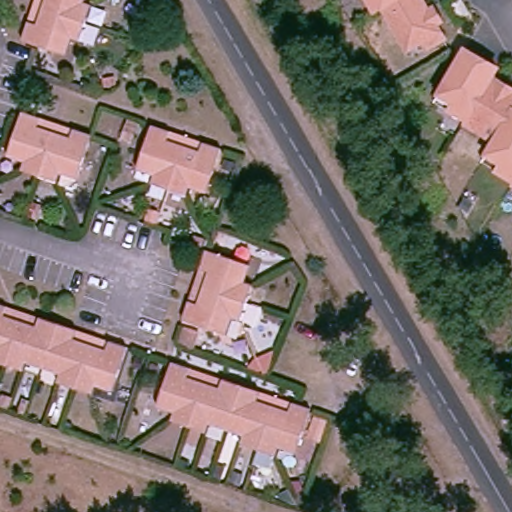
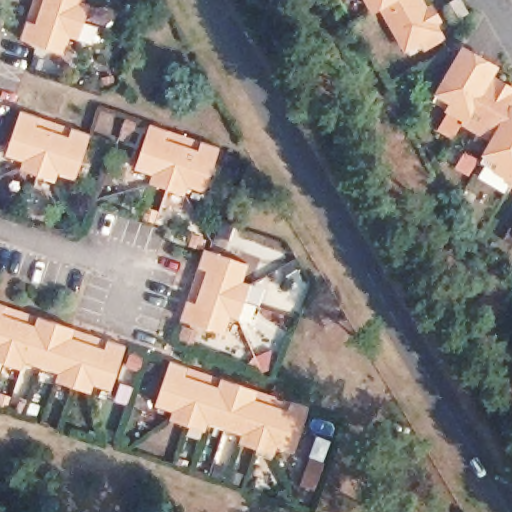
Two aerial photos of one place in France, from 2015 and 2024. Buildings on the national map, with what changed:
unchanged [(87,2),(94,4),(90,20),(83,39),(76,36),(70,55),(24,40),(30,20),(36,0),(88,0),(87,2)]
unchanged [(385,7),(381,10),(374,15),(365,0),(398,0),(385,7)]
unchanged [(385,7),(398,0),(418,0),(443,41),(427,51),(419,39),(405,47),(381,10),(385,7)]
unchanged [(470,14),(461,20),(451,4),(458,0),(462,0),(470,14)]
unchanged [(509,181),(511,178),(495,170),(480,161),(487,147),(491,140),(476,130),(471,128),(460,122),(462,119),(446,110),(431,101),(438,87),(449,68),(460,48),(492,66),(487,75),(512,89),(512,105),(510,109),(512,110),(512,183),(509,181)]
unchanged [(72,175),(55,170),(52,180),(34,174),(20,169),(23,157),(5,152),(20,106),(38,112),(54,117),(70,122),(86,128),(72,175)]
unchanged [(207,185),(186,180),(183,190),(168,185),(151,179),(153,169),(137,164),(150,120),(168,125),(201,136),(219,142),(207,185)]
unchanged [(256,262),(251,280),(261,284),(257,300),(250,318),(239,314),(234,332),(189,317),(195,296),(201,280),(204,266),(212,246),(256,262)]
unchanged [(95,385),(91,394),(72,388),(53,381),(57,371),(42,366),(24,360),(21,370),(1,363),(0,362),(0,301),(6,303),(20,307),(37,313),(57,320),(77,327),(91,331),(108,337),(127,345),(113,390),(95,385)]
unchanged [(300,449),(280,443),(275,455),(259,449),(239,443),(242,430),(228,425),(209,420),(204,431),(188,426),(170,418),(174,407),(158,401),(173,355),(195,362),(206,366),(222,372),(242,379),(263,386),(276,390),(293,396),(315,404),(300,449)]

